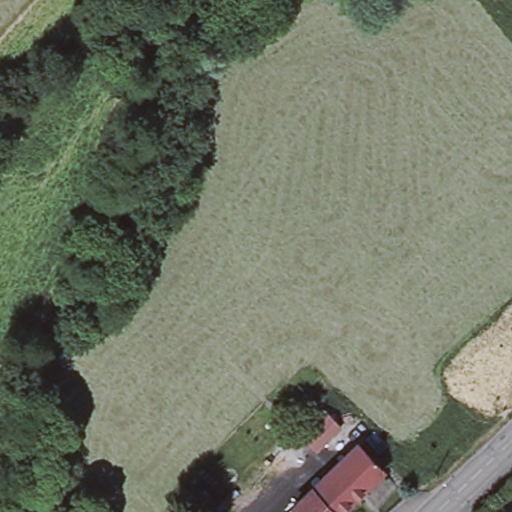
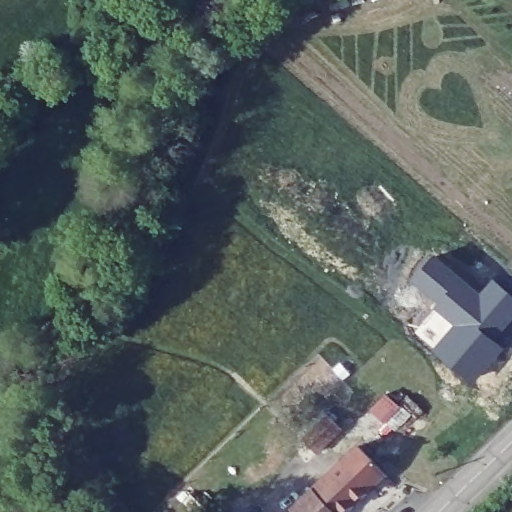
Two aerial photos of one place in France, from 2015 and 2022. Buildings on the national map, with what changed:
new [(494,280),(512,297),(512,327),(499,343),(507,350),(472,387),(433,352),(452,329),(432,310),(437,304),(412,284),(432,256),(480,295),(494,280)]
new [(399,408),(385,425),(371,410),(384,395),(399,408)]
unchanged [(301,439),(326,415),(338,428),(313,452),(301,439)]
unchanged [(356,446),(381,472),(340,512),(296,512),(292,507),(310,490),(356,446)]

